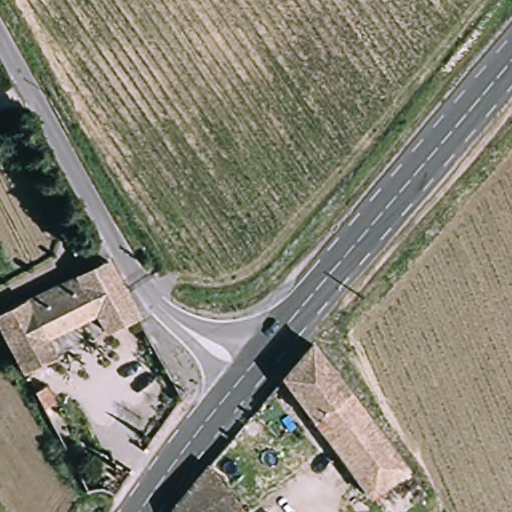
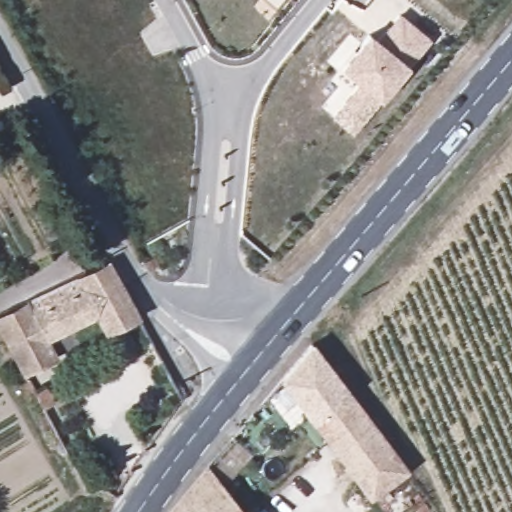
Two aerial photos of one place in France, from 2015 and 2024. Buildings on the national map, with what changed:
new [(345,67),(372,35),(381,42),(390,31),(403,16),(432,40),(420,55),(410,66),(355,132),(336,117),(365,83),(345,67)]
unchanged [(106,261),(138,317),(105,333),(95,314),(45,339),(56,358),(23,374),(0,330),(0,313),(106,261)]
unchanged [(407,471),(368,497),(281,378),(311,344),(407,471)]
unchanged [(53,403),(42,410),(33,394),(45,387),(53,403)]
demolished [(231,438),(243,449),(222,473),(210,462),(231,438)]
unchanged [(190,482),(207,461),(247,512),(170,512),(168,510),(190,482)]

